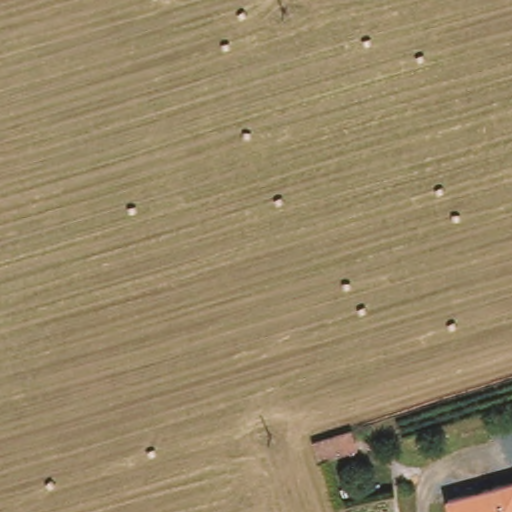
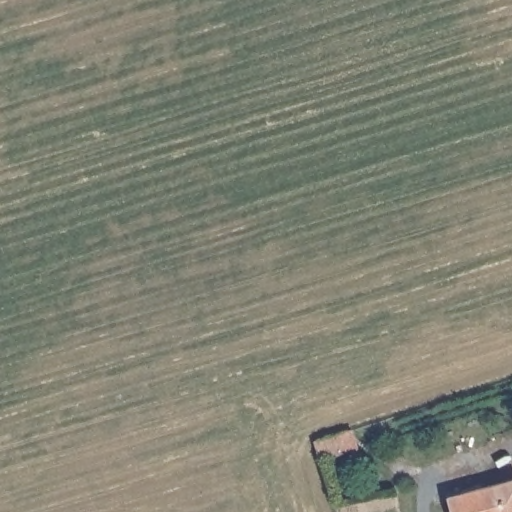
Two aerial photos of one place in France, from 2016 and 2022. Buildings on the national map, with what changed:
unchanged [(361,450),(321,465),(315,444),(353,431),(361,450)]
unchanged [(512,481),(512,512),(452,512),(449,502),(512,481)]

